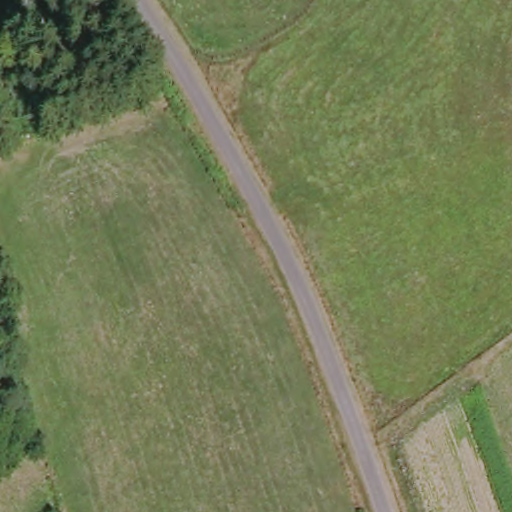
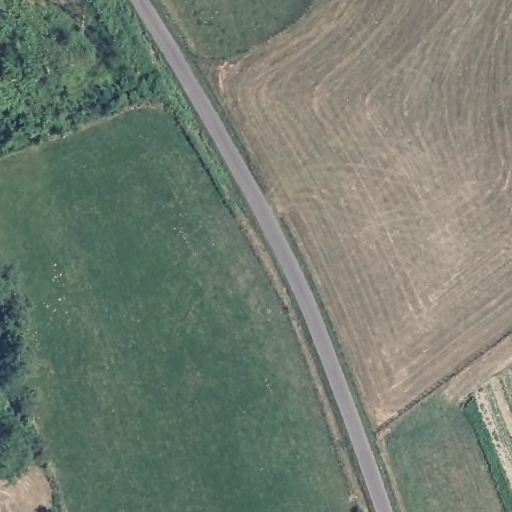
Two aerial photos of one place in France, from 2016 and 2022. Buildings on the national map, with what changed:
[]

